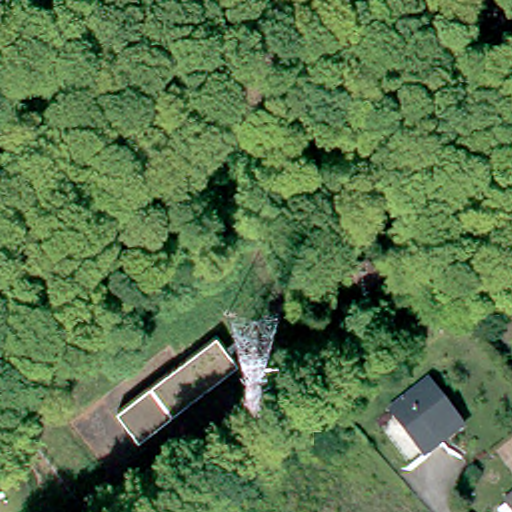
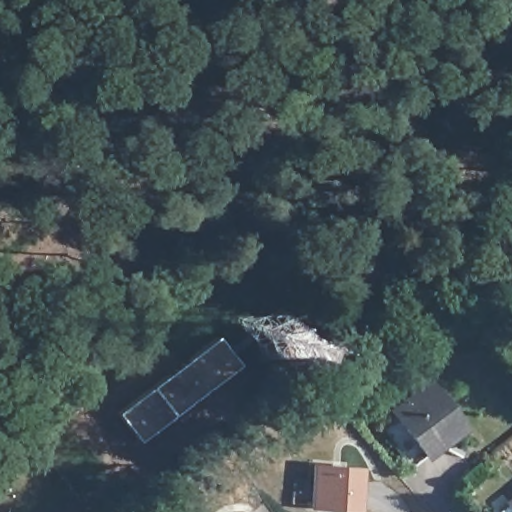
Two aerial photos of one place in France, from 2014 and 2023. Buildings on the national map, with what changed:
unchanged [(386,276),(382,279),(387,284),(377,294),(372,288),(367,291),(350,271),(369,255),(386,276)]
unchanged [(119,406),(215,328),(242,364),(138,437),(119,406)]
unchanged [(465,427),(427,456),(393,411),(432,383),(465,427)]
new [(357,511),(307,506),(310,462),(361,466),(357,511)]
unchanged [(510,503),(512,501),(512,506),(510,503)]

